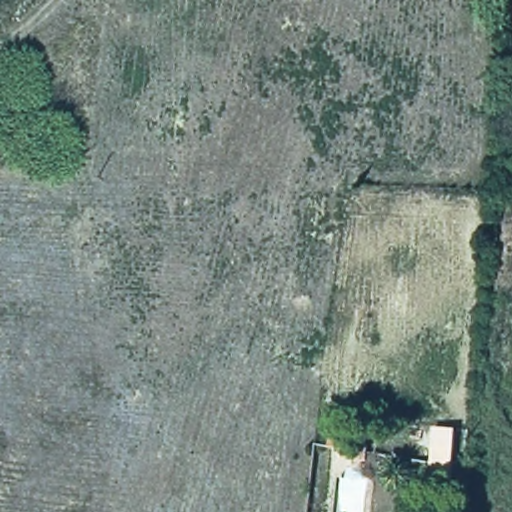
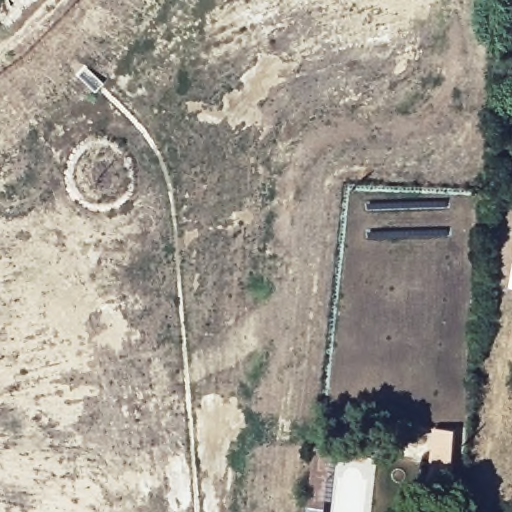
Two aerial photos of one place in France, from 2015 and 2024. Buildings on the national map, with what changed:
unchanged [(456,434),(453,480),(433,479),(434,458),(436,432),(456,434)]

